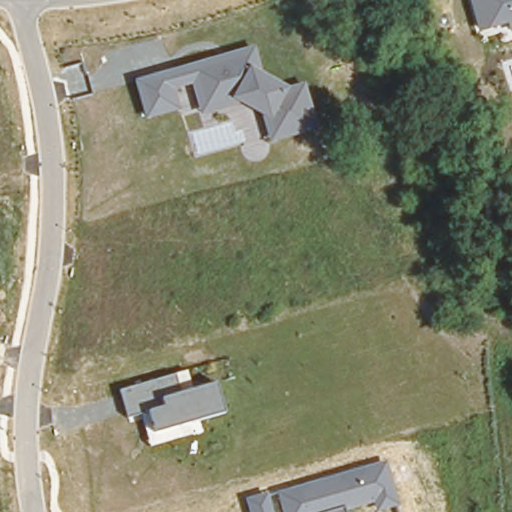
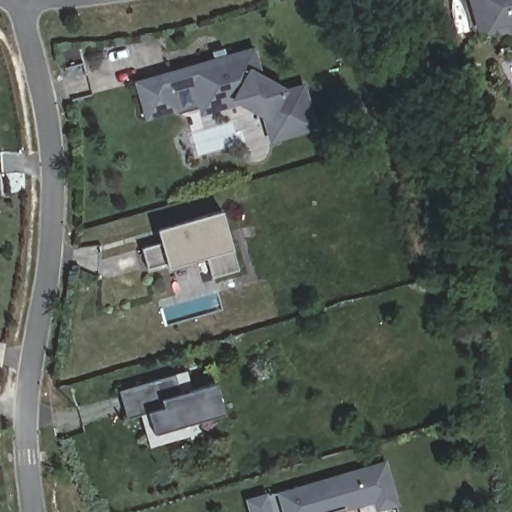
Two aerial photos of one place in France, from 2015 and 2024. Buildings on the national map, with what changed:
unchanged [(505,25),(476,32),(468,0),(512,0),(512,31),(508,32),(505,25)]
unchanged [(316,129),(268,142),(260,113),(237,102),(197,114),(189,84),(174,90),(179,109),(141,119),(132,79),(254,46),(260,75),(287,88),(302,83),(316,129)]
new [(210,278),(202,257),(169,266),(166,262),(146,268),(140,249),(161,241),(157,229),(222,210),(234,249),(240,268),(210,278)]
unchanged [(190,388),(217,380),(225,412),(198,420),(200,430),(147,445),(136,415),(125,418),(117,390),(186,371),(190,388)]
unchanged [(399,505),(376,512),(373,503),(345,511),(345,512),(281,512),(275,492),(387,461),(399,505)]
unchanged [(274,512),(248,512),(244,496),(268,490),(274,512)]

